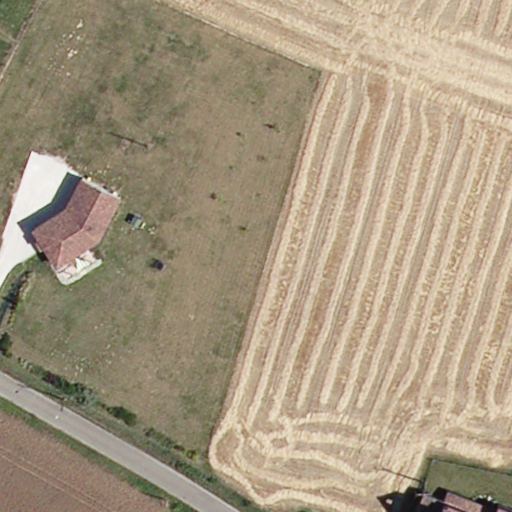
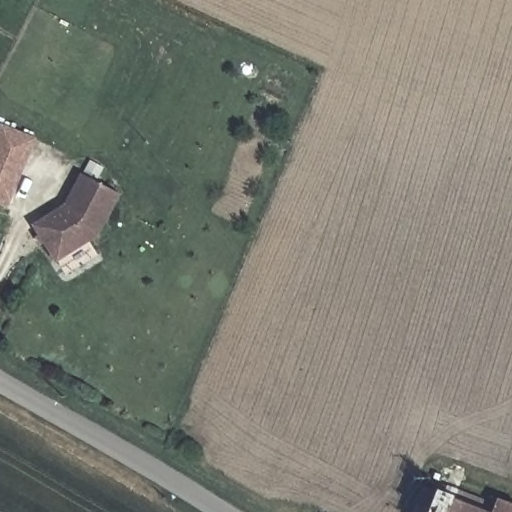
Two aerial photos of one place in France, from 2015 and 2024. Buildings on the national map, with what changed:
new [(0,204),(0,130),(2,126),(39,139),(11,208),(0,204)]
unchanged [(50,262),(27,228),(57,208),(75,176),(114,194),(92,236),(50,262)]
unchanged [(422,512),(429,488),(450,493),(452,490),(507,507),(509,499),(512,501),(512,512),(422,512)]

